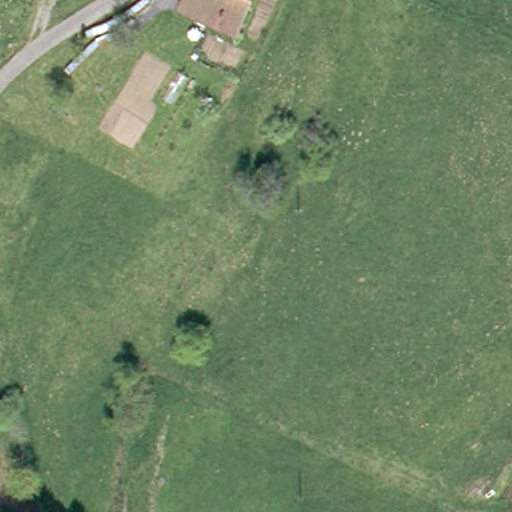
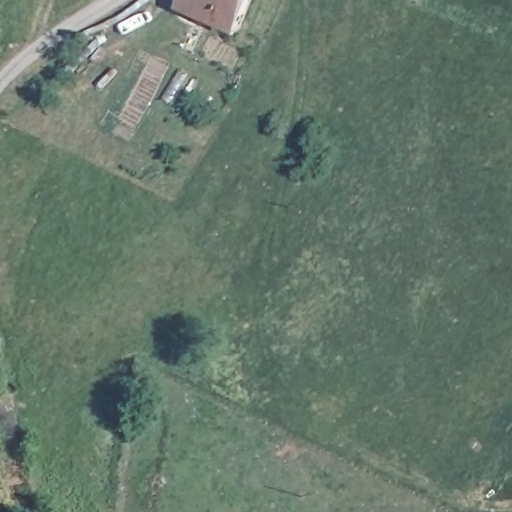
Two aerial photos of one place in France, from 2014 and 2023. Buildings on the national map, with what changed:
unchanged [(239,38),(195,19),(180,12),(184,0),(255,0),(239,38)]

